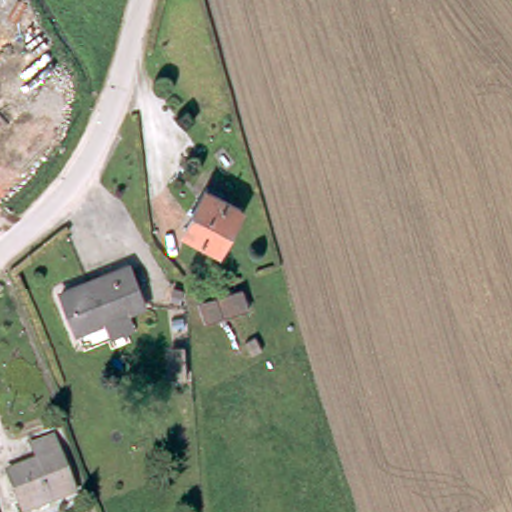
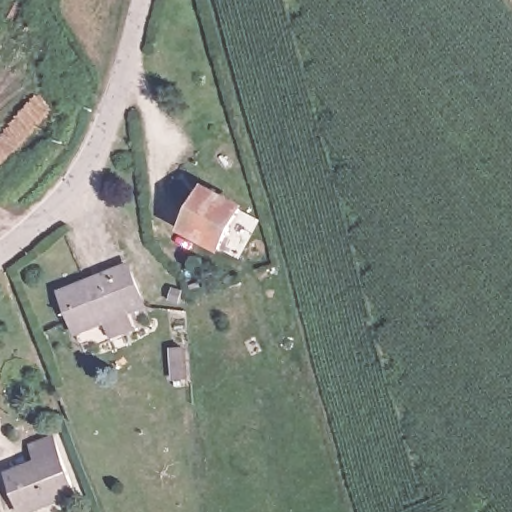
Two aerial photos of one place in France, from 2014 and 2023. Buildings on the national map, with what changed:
unchanged [(214,250),(179,230),(200,190),(236,210),(214,250)]
unchanged [(121,330),(112,315),(84,333),(61,298),(125,257),(148,292),(133,302),(142,316),(121,330)]
unchanged [(195,329),(187,301),(241,283),(248,313),(195,329)]
unchanged [(35,445),(58,436),(81,492),(27,512),(12,473),(41,462),(35,445)]

